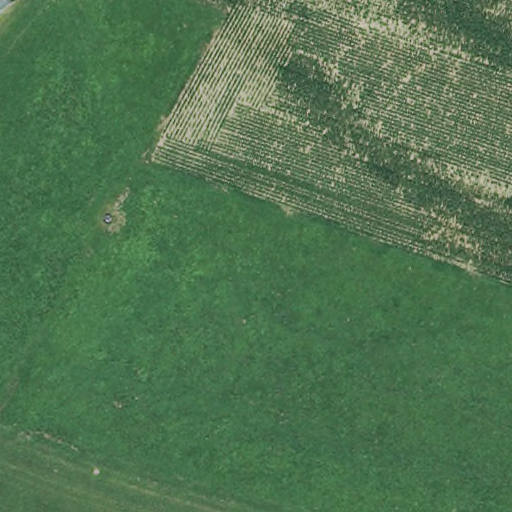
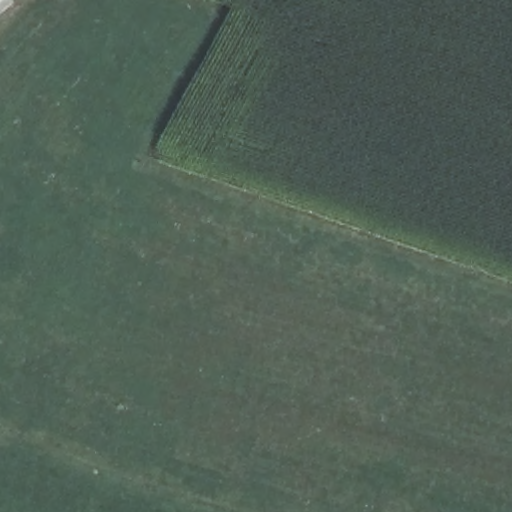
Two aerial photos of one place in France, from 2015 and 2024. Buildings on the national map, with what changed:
unchanged [(0,0),(17,0),(0,13),(0,0)]

